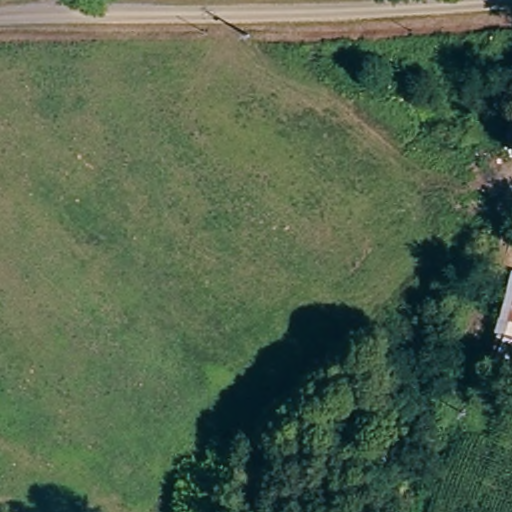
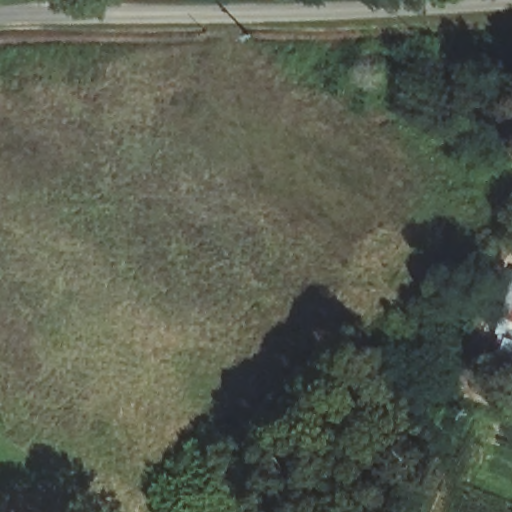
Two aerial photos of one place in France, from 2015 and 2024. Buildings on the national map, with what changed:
unchanged [(490,364),(512,282),(512,374),(490,364)]

